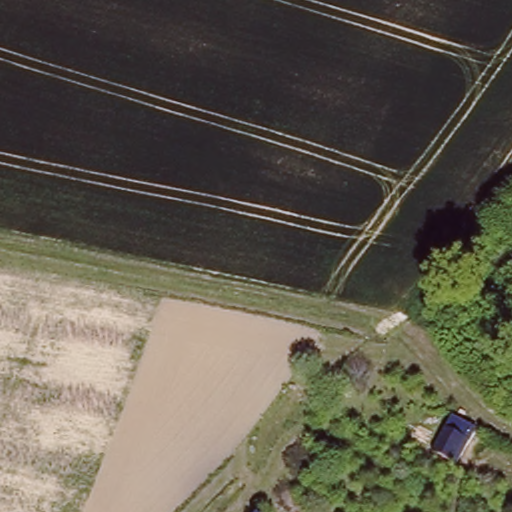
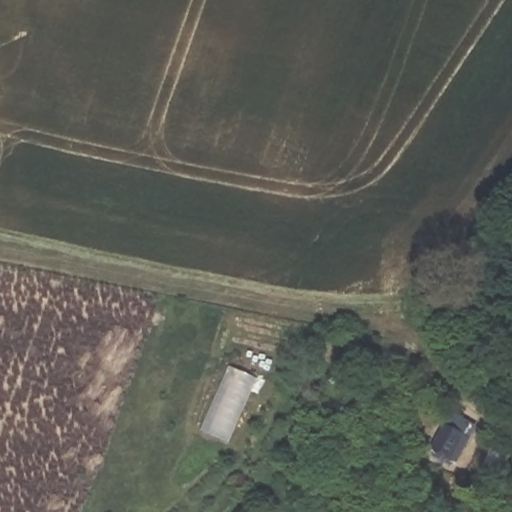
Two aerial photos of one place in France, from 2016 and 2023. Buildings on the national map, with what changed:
new [(226,365),(255,377),(227,442),(199,429),(226,365)]
unchanged [(430,447),(452,412),(475,427),(455,460),(430,447)]

